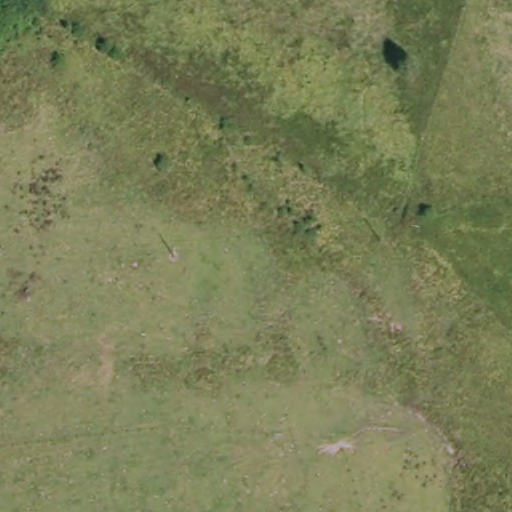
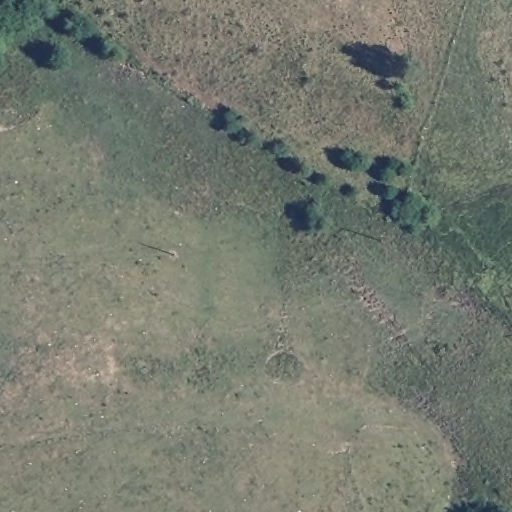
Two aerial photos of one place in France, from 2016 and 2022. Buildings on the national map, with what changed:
[]

